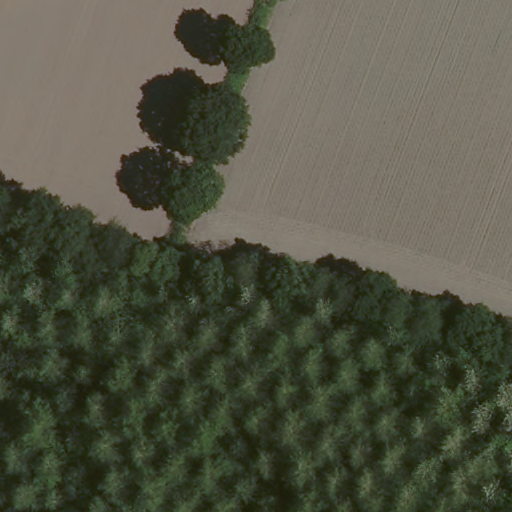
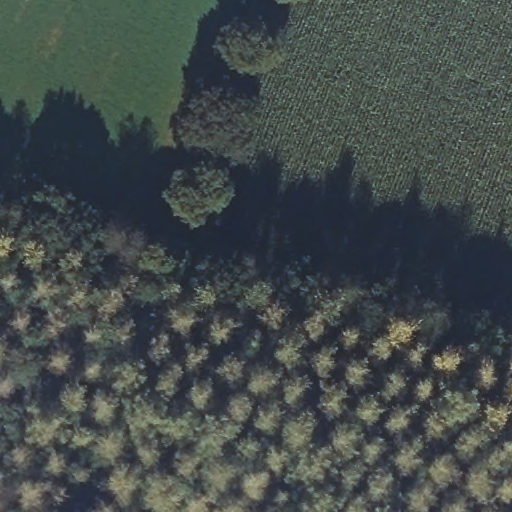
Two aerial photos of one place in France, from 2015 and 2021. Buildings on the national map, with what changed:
[]

